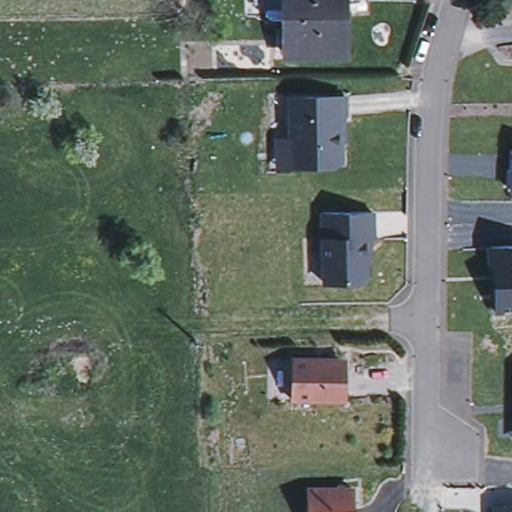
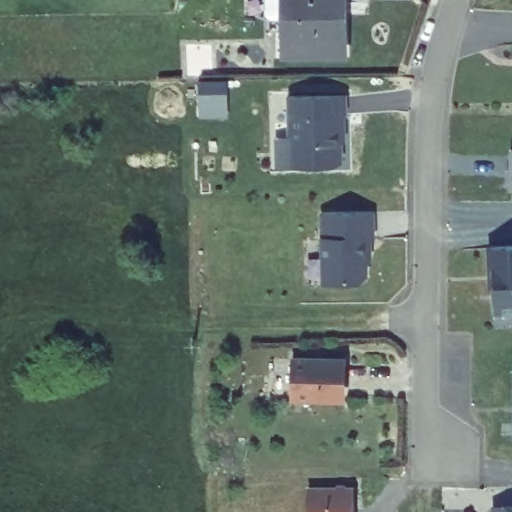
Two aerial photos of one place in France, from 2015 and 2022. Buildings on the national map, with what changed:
unchanged [(289,52),(289,21),(277,20),(277,13),(277,0),(349,0),(349,12),(349,54),(289,52)]
new [(227,85),(227,120),(199,121),(199,84),(227,85)]
unchanged [(342,97),(342,117),(337,117),(338,164),(330,168),(287,169),(287,97),(342,97)]
unchanged [(502,190),(504,150),(512,151),(512,191),(502,190)]
unchanged [(374,212),(375,240),(367,240),(367,275),(361,283),(325,284),(324,214),(374,212)]
unchanged [(512,247),(512,312),(497,312),(496,287),(498,287),(497,270),(492,270),(491,248),(512,247)]
unchanged [(342,361),(340,401),(291,399),(292,359),(342,361)]
unchanged [(355,512),(309,512),(309,490),(355,490),(355,512)]
unchanged [(512,507),(512,512),(495,512),(495,507),(512,507)]

